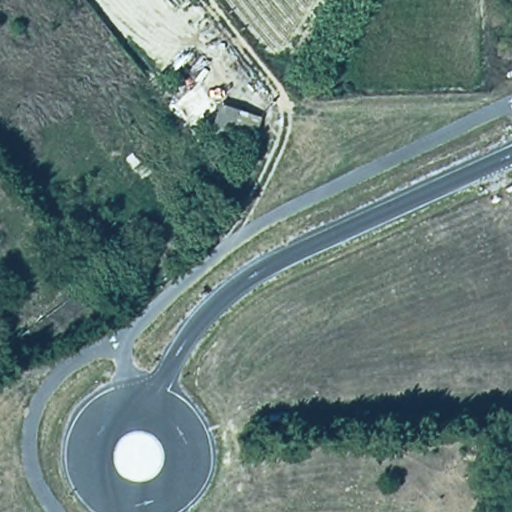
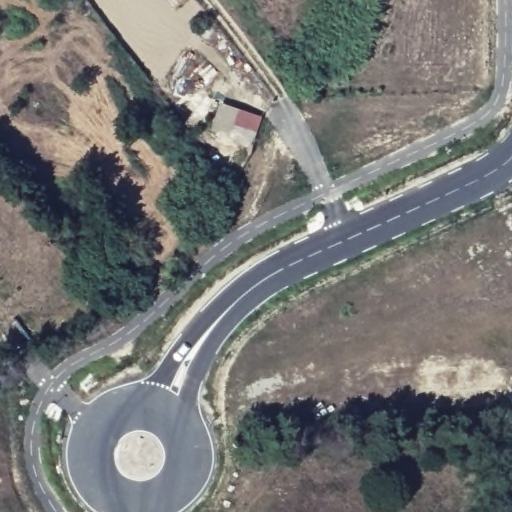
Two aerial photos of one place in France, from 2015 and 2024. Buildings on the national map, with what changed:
unchanged [(237,103),(230,123),(243,128),(243,150),(228,151),(227,138),(207,132),(217,98),(237,103)]
unchanged [(127,271),(142,294),(121,311),(106,284),(127,271)]

